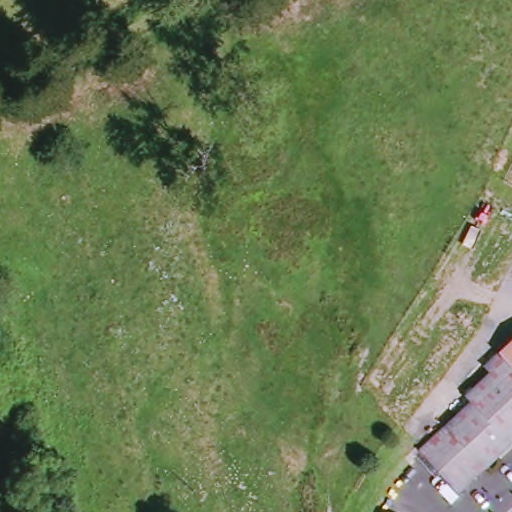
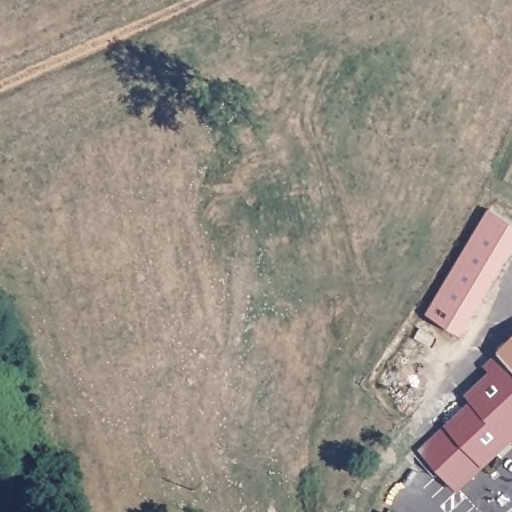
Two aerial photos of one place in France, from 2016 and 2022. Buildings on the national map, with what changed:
new [(512,227),(512,266),(446,363),(400,335),(495,215),(512,227)]
unchanged [(477,393),(497,373),(490,364),(491,363),(492,364),(507,351),(506,349),(512,344),(512,429),(477,393)]
unchanged [(477,402),(472,395),(475,392),(477,393),(512,429),(512,437),(486,461),(490,467),(463,491),(435,459),(424,449),(451,425),(477,402)]

